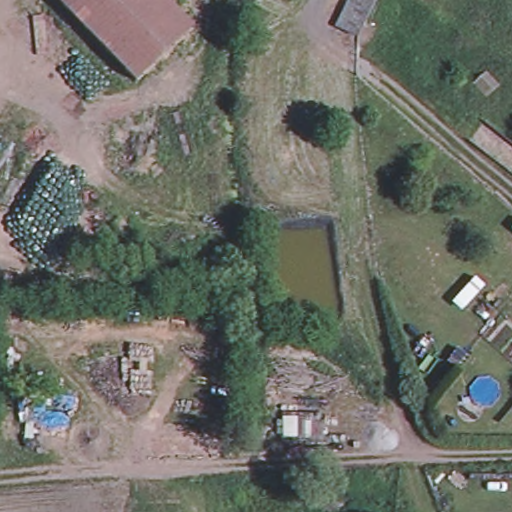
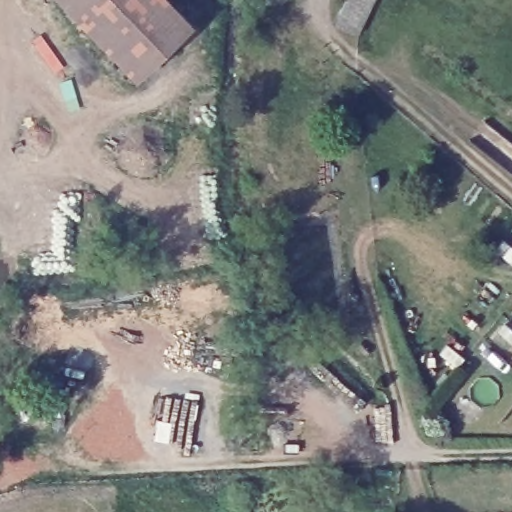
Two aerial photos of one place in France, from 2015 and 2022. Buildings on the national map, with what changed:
unchanged [(132,77),(58,0),(167,0),(192,25),(138,76),(135,80),(132,77)]
unchanged [(346,0),(375,0),(357,33),(337,21),(346,0)]

